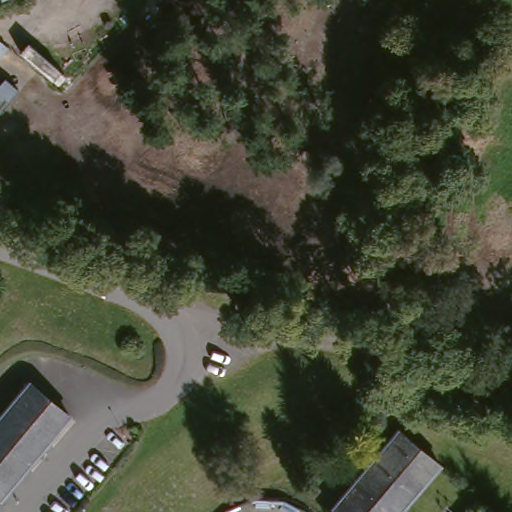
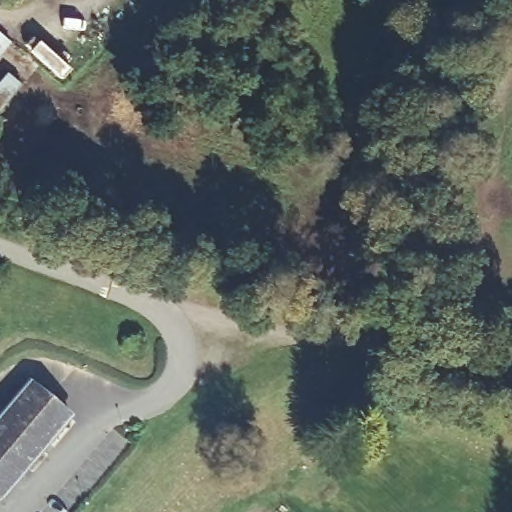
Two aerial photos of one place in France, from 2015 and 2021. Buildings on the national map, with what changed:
unchanged [(0,42),(13,51),(0,67),(0,42)]
unchanged [(0,506),(0,425),(35,383),(74,417),(0,506)]
demolished [(344,512),(408,436),(447,469),(411,512),(344,512)]

